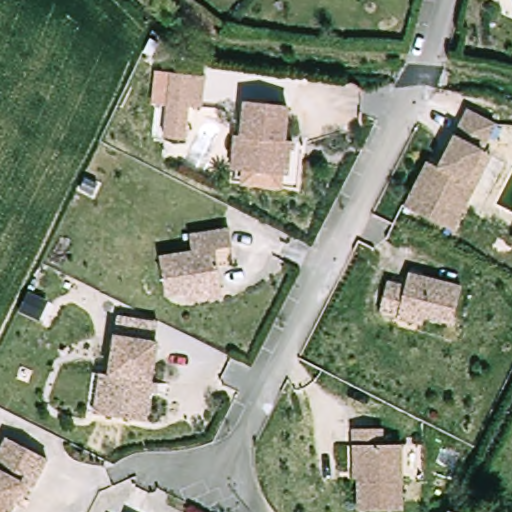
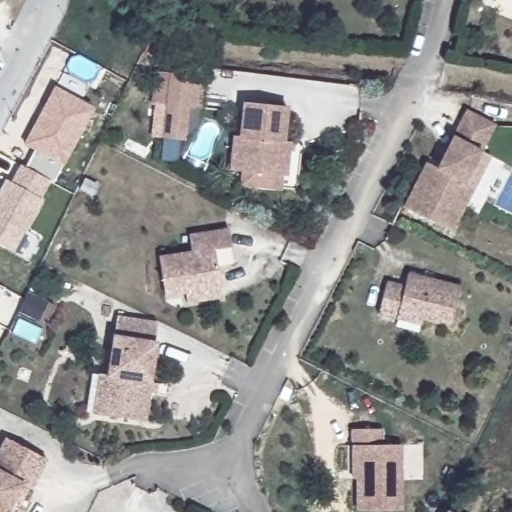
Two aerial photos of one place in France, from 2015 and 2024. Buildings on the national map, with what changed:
unchanged [(490,0),(499,0),(497,4),(490,0)]
unchanged [(174,78),(211,82),(207,114),(194,112),(191,145),(167,143),(174,78)]
new [(24,144),(55,86),(95,107),(64,165),(24,144)]
unchanged [(250,105),(293,109),(289,144),(296,145),(292,178),(249,174),(237,172),(240,140),(246,140),(250,105)]
unchanged [(409,212),(427,178),(438,184),(472,116),(502,130),(487,160),(495,163),(480,192),(457,236),(409,212)]
new [(11,181),(20,164),(52,181),(43,199),(45,200),(28,231),(26,230),(14,252),(0,245),(0,187),(5,179),(11,181)]
new [(278,178),(276,190),(238,186),(239,174),(278,178)]
unchanged [(193,302),(191,292),(171,295),(165,257),(198,252),(195,236),(235,230),(237,247),(220,250),(226,287),(227,297),(193,302)]
unchanged [(400,323),(380,319),(388,288),(405,292),(408,279),(462,291),(453,328),(425,322),(424,330),(400,323)]
unchanged [(114,341),(157,348),(145,428),(117,425),(97,421),(103,380),(108,381),(114,341)]
unchanged [(342,435),(372,432),(373,448),(392,447),(413,446),(415,482),(394,483),(395,512),(352,512),(348,451),(343,451),(342,435)]
unchanged [(6,439),(46,460),(31,490),(22,485),(8,512),(0,512),(0,450),(6,439)]
unchanged [(442,511),(444,512),(442,512),(442,511)]

